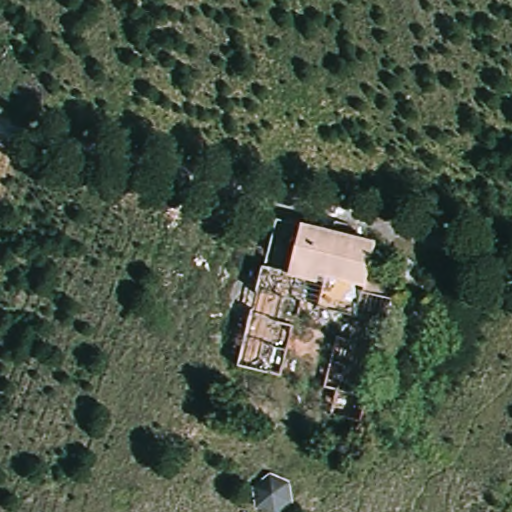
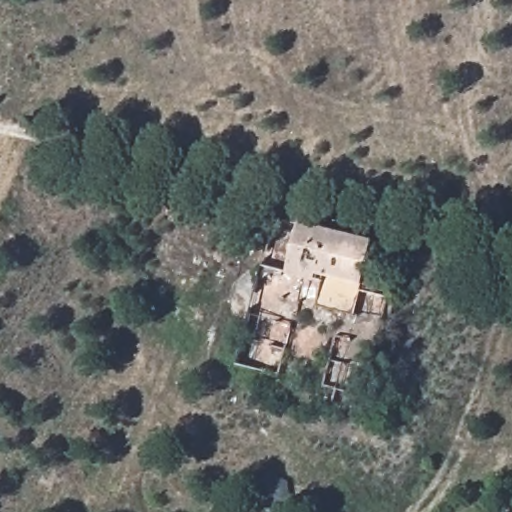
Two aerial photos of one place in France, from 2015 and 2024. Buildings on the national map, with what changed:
unchanged [(364,400),(330,388),(350,321),(284,299),(261,366),(234,357),(263,263),(269,265),(285,215),(381,245),(371,278),(397,287),(364,400)]

